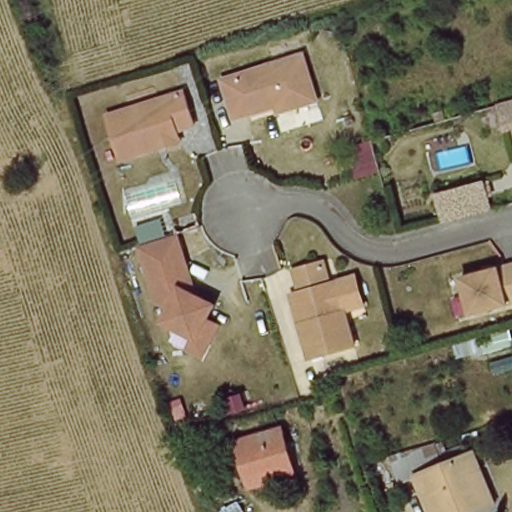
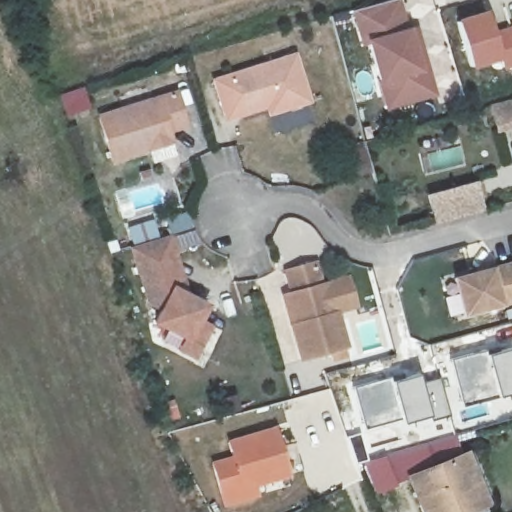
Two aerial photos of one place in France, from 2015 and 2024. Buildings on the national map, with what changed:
new [(381,83),(369,40),(361,42),(351,12),(395,0),(401,0),(409,28),(414,26),(427,70),(436,95),(389,110),(381,83)]
new [(488,9),(494,28),(512,23),(512,67),(505,69),(503,58),(474,68),(459,21),(488,9)]
unchanged [(296,57),(309,104),(289,110),(288,102),(227,121),(215,82),(296,57)]
unchanged [(111,157),(98,113),(176,90),(186,123),(168,129),(172,140),(147,147),(111,157)]
unchanged [(497,140),(492,119),(512,114),(512,135),(497,140)]
unchanged [(478,176),(484,205),(436,216),(429,187),(478,176)]
unchanged [(178,353),(185,342),(156,326),(163,314),(150,307),(133,250),(170,240),(176,260),(188,300),(208,311),(201,324),(212,330),(201,351),(194,362),(178,353)]
unchanged [(508,265),(512,264),(512,302),(458,314),(450,277),(508,265)]
unchanged [(286,274),(316,266),(321,288),(328,286),(345,351),(300,363),(291,328),(284,298),(289,297),(292,296),(286,274)]
new [(350,273),(361,307),(336,315),(328,286),(321,288),(319,281),(350,273)]
new [(497,347),(494,352),(512,349),(512,400),(503,402),(499,396),(464,404),(453,360),(497,347)]
new [(403,373),(403,380),(419,374),(422,382),(439,378),(449,416),(414,427),(409,420),(403,422),(400,416),(366,430),(354,388),(403,373)]
unchanged [(274,426),(294,469),(253,488),(231,445),(274,426)]
unchanged [(444,440),(452,463),(483,452),(489,472),(483,474),(494,505),(476,512),(438,512),(424,473),(407,479),(397,451),(444,440)]

